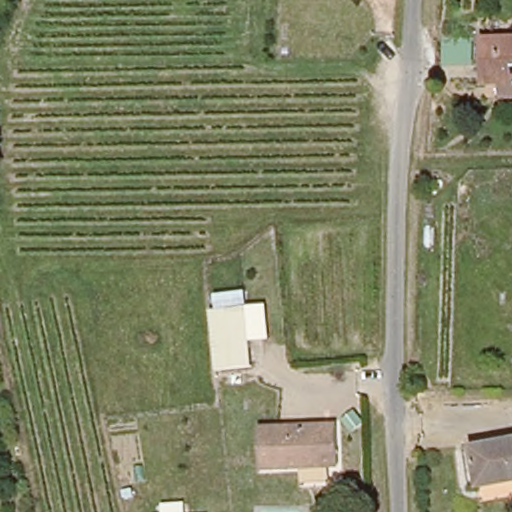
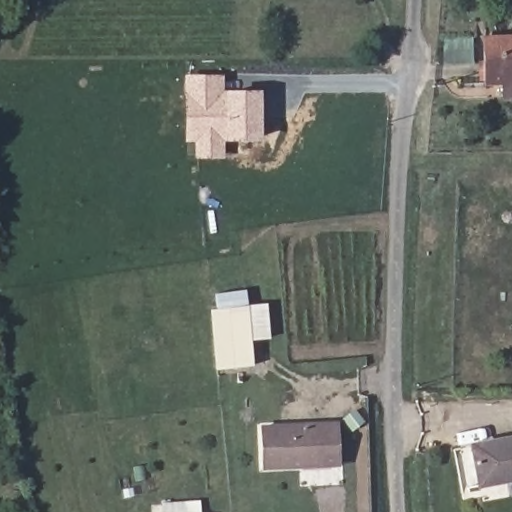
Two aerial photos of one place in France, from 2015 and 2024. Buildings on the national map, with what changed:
unchanged [(484,82),(483,38),(512,36),(512,96),(503,96),(502,81),(484,82)]
new [(223,89),(225,90),(261,89),(262,141),(226,141),(224,141),(224,158),(193,159),(193,143),(184,143),(182,75),(223,75),(223,89)]
unchanged [(252,367),(216,369),(216,367),(211,310),(247,308),(252,365),(252,367)]
unchanged [(337,464),(263,468),(261,428),(335,424),(337,464)]
unchanged [(473,446),(512,439),(512,479),(479,485),(473,446)]

